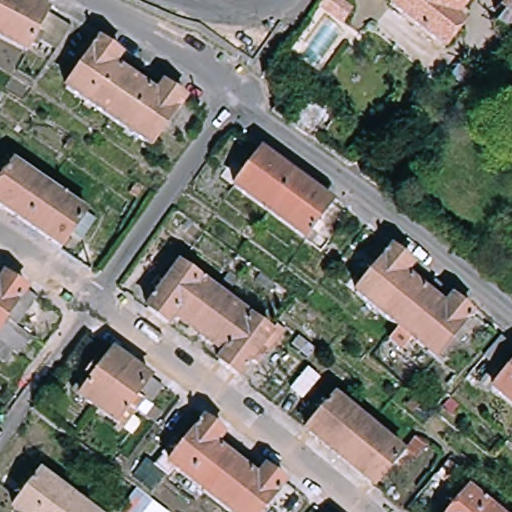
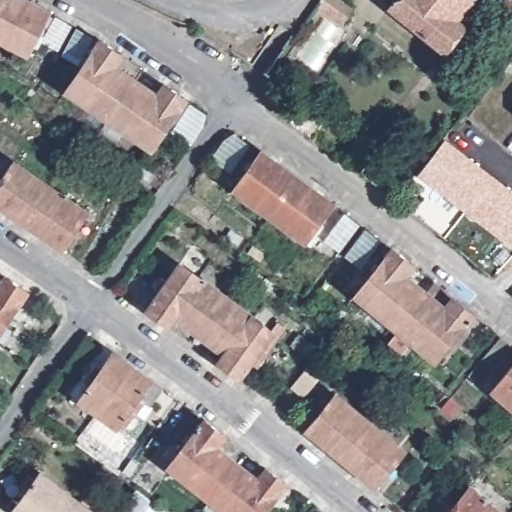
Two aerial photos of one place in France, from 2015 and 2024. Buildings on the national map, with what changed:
unchanged [(45,34),(38,45),(32,42),(28,50),(0,35),(0,0),(31,0),(50,10),(49,12),(58,17),(53,26),(43,21),(38,30),(45,34)]
unchanged [(455,17),(463,23),(445,47),(390,4),(393,0),(468,0),(455,17)]
unchanged [(67,87),(100,38),(120,52),(113,62),(156,92),(163,82),(185,96),(151,145),(67,87)]
unchanged [(333,109),(312,139),(287,121),(309,91),(333,109)]
new [(445,138),(512,191),(512,248),(417,174),(445,138)]
unchanged [(221,175),(233,158),(246,168),(260,149),(332,202),(318,220),(322,224),(310,241),(221,175)]
unchanged [(0,205),(0,182),(16,159),(88,209),(61,247),(0,205)]
new [(340,252),(324,240),(345,213),(360,226),(340,252)]
new [(365,229),(381,241),(360,268),(345,256),(365,229)]
unchanged [(356,290),(391,247),(411,264),(404,273),(425,290),(397,325),(356,290)]
unchanged [(225,348),(177,311),(167,323),(147,307),(160,290),(154,286),(162,275),(168,279),(181,261),(216,288),(230,269),(240,277),(226,295),(271,329),(277,321),(284,326),(265,352),(263,353),(256,362),(250,358),(237,376),(217,360),(225,348)]
unchanged [(5,274),(27,290),(10,315),(42,337),(35,348),(31,346),(22,358),(8,349),(0,361),(0,281),(5,274)]
unchanged [(436,358),(397,325),(425,290),(445,306),(452,296),(472,313),(436,358)]
unchanged [(98,410),(71,390),(85,372),(87,374),(94,366),(90,362),(103,344),(112,350),(131,365),(98,410)]
unchanged [(505,363),(486,384),(472,374),(492,352),(505,363)]
unchanged [(125,412),(116,424),(98,410),(131,365),(150,378),(162,387),(150,404),(142,399),(131,416),(125,412)]
unchanged [(303,395),(291,386),(308,366),(320,375),(303,395)]
unchanged [(512,401),(495,388),(512,368),(512,401)]
unchanged [(315,406),(324,396),(329,400),(335,393),(403,449),(374,485),(306,429),(321,410),(315,406)]
unchanged [(155,465),(175,439),(183,445),(204,418),(223,434),(216,443),(257,476),(265,466),(285,483),(262,512),(229,512),(175,468),(168,476),(155,465)]
unchanged [(412,457),(403,449),(410,440),(420,448),(412,457)]
unchanged [(27,489),(21,485),(29,475),(35,479),(40,472),(75,499),(65,512),(17,512),(12,508),(27,489)]
unchanged [(499,512),(447,512),(468,486),(499,512)]
unchanged [(166,512),(119,512),(138,489),(166,512)]
unchanged [(93,512),(65,512),(75,499),(93,512)]

